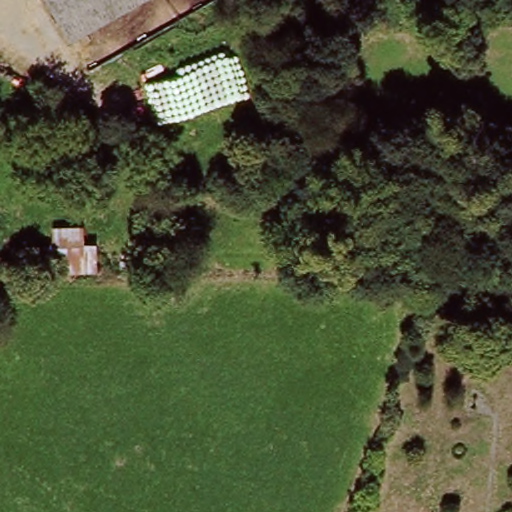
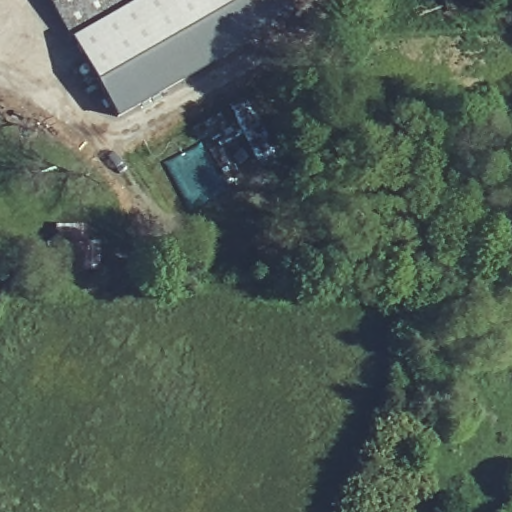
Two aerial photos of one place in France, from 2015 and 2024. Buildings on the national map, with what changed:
unchanged [(72,41),(49,0),(144,0),(72,41)]
new [(117,119),(72,41),(144,0),(283,0),(295,19),(117,119)]
unchanged [(42,241),(52,240),(52,223),(85,222),(86,242),(99,241),(97,269),(43,269),(42,241)]

